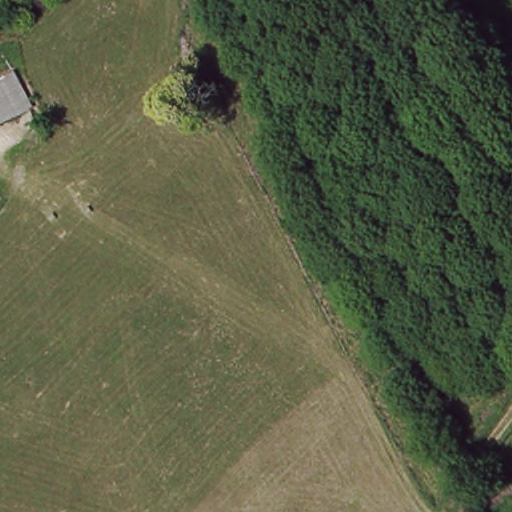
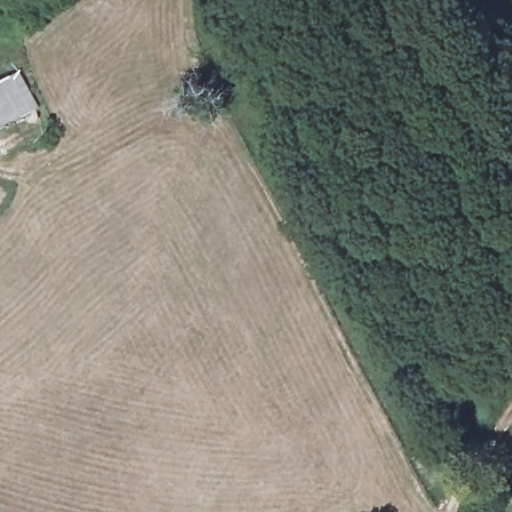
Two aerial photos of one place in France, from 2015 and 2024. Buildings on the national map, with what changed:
unchanged [(32,99),(0,129),(0,75),(7,69),(32,99)]

